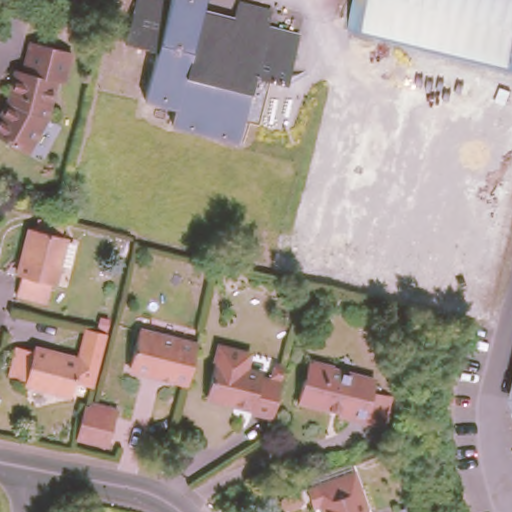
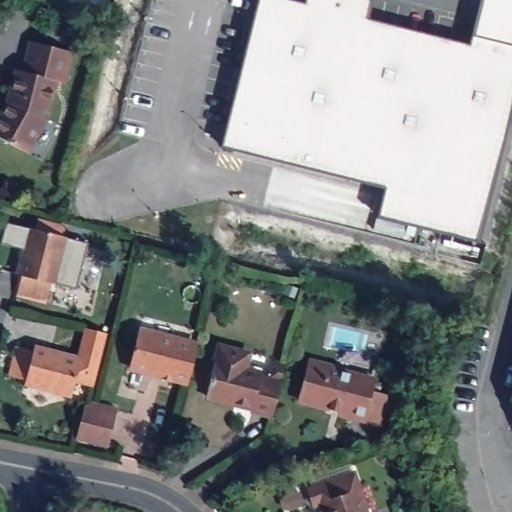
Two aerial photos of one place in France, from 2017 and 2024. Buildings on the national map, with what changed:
demolished [(236,0),(242,0),(270,8),(266,23),(298,31),(286,80),(270,76),(255,73),(242,119),(237,137),(171,121),(176,103),(143,95),(156,47),(123,39),(133,0),(203,0),(202,3),(200,12),(230,20),(233,11),(236,0)]
new [(479,245),(390,222),(397,193),(222,147),(260,0),(278,0),(305,6),(308,0),(354,0),(372,4),(368,26),(468,51),(483,0),(512,0),(512,118),(479,245)]
demolished [(346,26),(353,0),(512,0),(512,69),(346,26)]
unchanged [(58,74),(49,113),(27,148),(0,131),(0,112),(10,97),(18,63),(25,65),(32,35),(73,45),(65,76),(58,74)]
unchanged [(18,258),(26,226),(31,227),(34,216),(58,223),(56,233),(61,235),(50,283),(46,283),(41,300),(12,293),(22,259),(18,258)]
unchanged [(130,362),(139,326),(197,340),(188,377),(130,362)]
unchanged [(80,331),(105,335),(91,387),(74,384),(80,355),(81,350),(76,349),(80,331)]
unchanged [(49,350),(50,348),(80,355),(71,389),(25,377),(25,374),(8,370),(15,342),(49,350)]
unchanged [(251,405),(251,402),(206,391),(215,356),(261,368),(260,374),(280,379),(272,411),(251,405)]
unchanged [(341,412),(336,407),(298,398),(303,378),(308,374),(311,361),(335,367),(335,370),(375,380),(372,392),(395,398),(388,424),(341,412)]
unchanged [(510,396),(512,388),(512,401),(510,396)]
unchanged [(115,404),(106,441),(75,433),(83,401),(88,400),(89,398),(115,404)]
unchanged [(368,504),(364,505),(366,512),(326,512),(320,496),(315,492),(311,484),(355,468),(368,504)]

